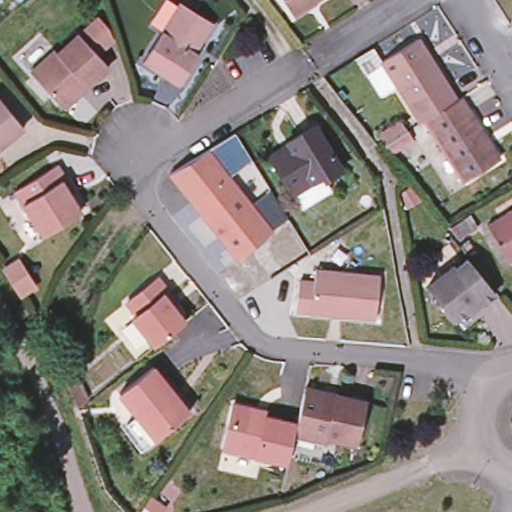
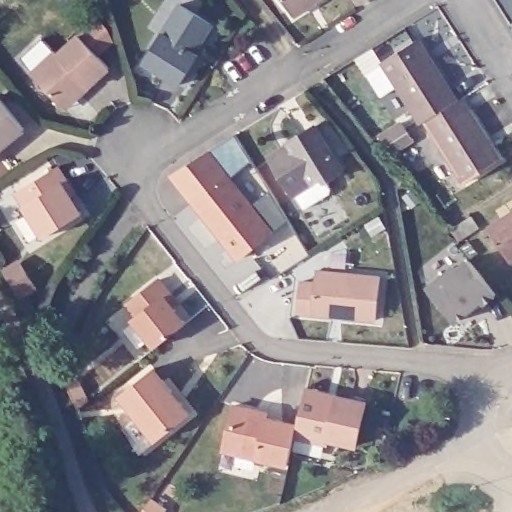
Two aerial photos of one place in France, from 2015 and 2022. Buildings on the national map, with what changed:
unchanged [(212,20),(197,42),(195,41),(191,47),(197,51),(178,80),(142,57),(179,0),(180,0),(212,20)]
unchanged [(297,12),(289,0),(316,0),(297,12)]
unchanged [(423,116),(419,118),(382,56),(415,35),(454,97),(423,116)]
unchanged [(60,106),(31,74),(55,52),(57,55),(79,36),(109,68),(87,88),(64,110),(60,106)]
unchanged [(497,153),(461,176),(423,116),(454,97),(459,93),(497,153)]
unchanged [(24,124),(0,144),(0,95),(24,124)]
unchanged [(270,154),(284,146),(285,148),(292,144),(289,140),(317,123),(345,166),(327,178),(324,173),(294,192),(270,154)]
unchanged [(170,174),(235,135),(251,162),(226,174),(190,202),(170,174)]
unchanged [(47,231),(20,187),(60,161),(69,174),(78,188),(74,191),(85,209),(47,231)]
unchanged [(226,174),(270,232),(237,256),(222,235),(219,238),(190,202),(226,174)]
unchanged [(512,207),(512,256),(506,259),(484,224),(512,207)]
unchanged [(497,294),(477,308),(475,304),(453,321),(427,285),(455,265),(457,266),(469,258),(497,294)]
unchanged [(384,271),(380,313),(300,305),(303,275),(317,276),(319,264),(384,271)]
unchanged [(137,316),(127,303),(158,278),(168,291),(177,304),(172,308),(184,323),(155,347),(132,319),(137,316)]
unchanged [(132,419),(141,411),(124,389),(157,363),(194,408),(160,435),(150,443),(132,419)]
unchanged [(355,445),(327,439),(326,443),(295,435),(297,424),(305,394),(306,388),(337,395),(365,402),(355,445)]
unchanged [(288,465),(223,449),(234,405),(255,410),(266,413),(265,417),(297,424),(295,435),(288,465)]

